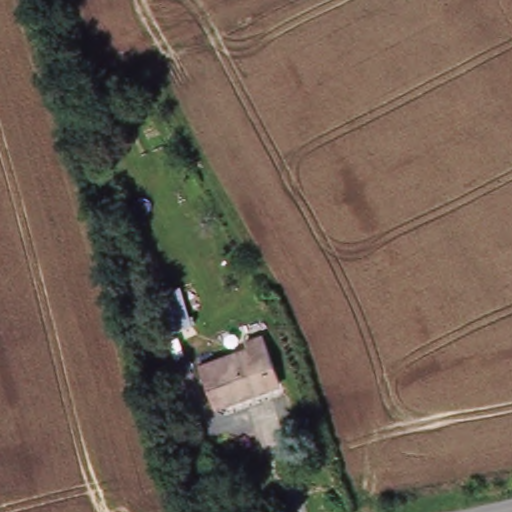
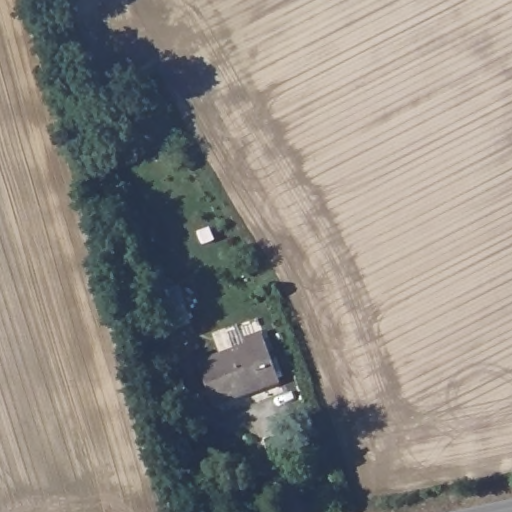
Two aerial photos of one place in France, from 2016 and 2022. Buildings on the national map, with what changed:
unchanged [(191,323),(166,331),(155,294),(180,286),(191,323)]
unchanged [(280,381),(214,405),(199,363),(247,346),(245,340),(263,333),(280,381)]

